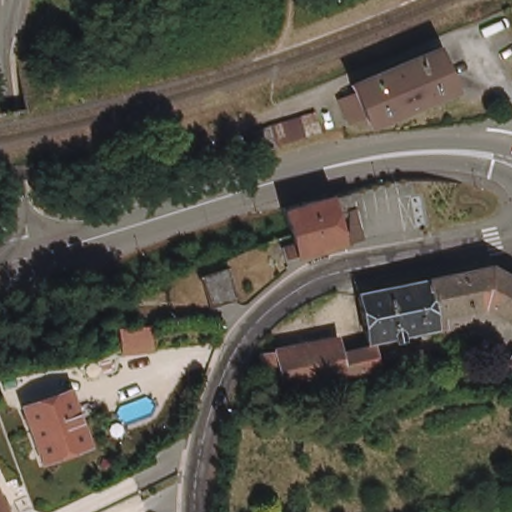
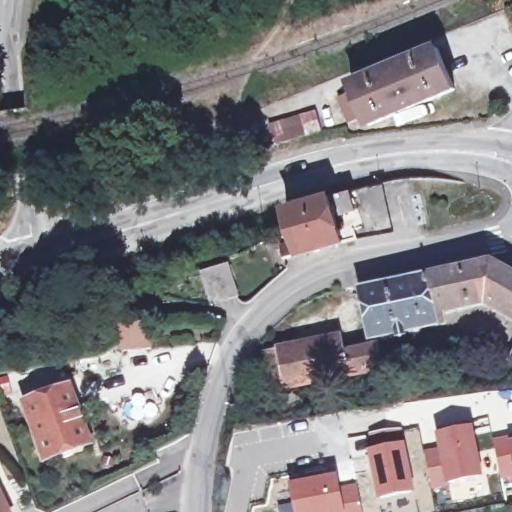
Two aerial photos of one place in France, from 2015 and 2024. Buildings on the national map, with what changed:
unchanged [(458,92),(370,126),(365,112),(347,121),(336,90),(350,80),(442,42),(458,92)]
unchanged [(324,131),(260,150),(255,129),(317,111),(324,131)]
unchanged [(365,235),(345,240),(289,257),(285,245),(297,242),(288,207),(302,204),(332,195),(353,194),(358,210),(365,235)]
unchanged [(242,292),(217,305),(203,278),(231,264),(242,292)]
unchanged [(442,318),(435,281),(500,270),(512,278),(512,322),(490,310),(442,318)]
unchanged [(372,341),(363,293),(435,281),(442,318),(442,328),(372,341)]
unchanged [(148,357),(110,367),(106,346),(121,335),(145,331),(148,357)]
unchanged [(342,370),(341,374),(267,388),(259,352),(335,336),(340,353),(377,347),(377,353),(445,340),(447,353),(342,370)]
unchanged [(77,391),(92,448),(47,463),(32,404),(77,391)]
new [(437,448),(435,435),(473,428),(483,478),(429,490),(422,450),(437,448)]
new [(370,450),(367,435),(403,429),(416,493),(377,501),(367,451),(370,450)]
new [(511,442),(512,442),(512,479),(500,481),(492,440),(510,435),(511,442)]
new [(275,506),(292,503),(290,486),(337,475),(340,485),(356,482),(362,512),(277,512),(275,506)]
unchanged [(10,510),(5,512),(0,512),(0,488),(10,510)]

